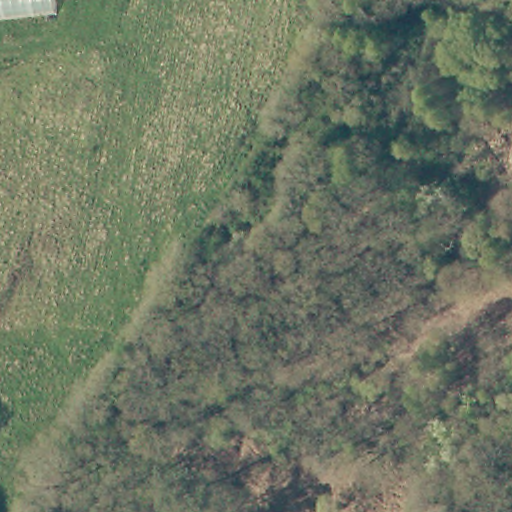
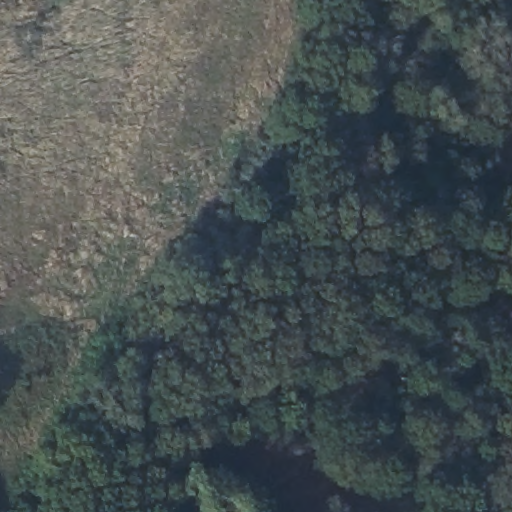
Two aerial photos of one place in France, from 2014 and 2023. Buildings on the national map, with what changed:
new [(55,14),(0,19),(0,0),(54,0),(55,14)]
demolished [(70,14),(0,22),(0,0),(68,0),(70,14)]

